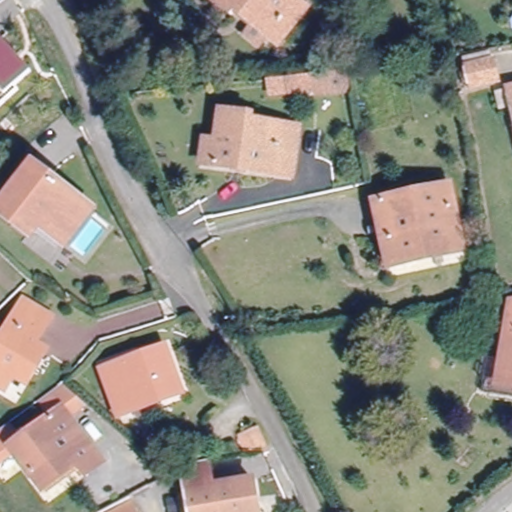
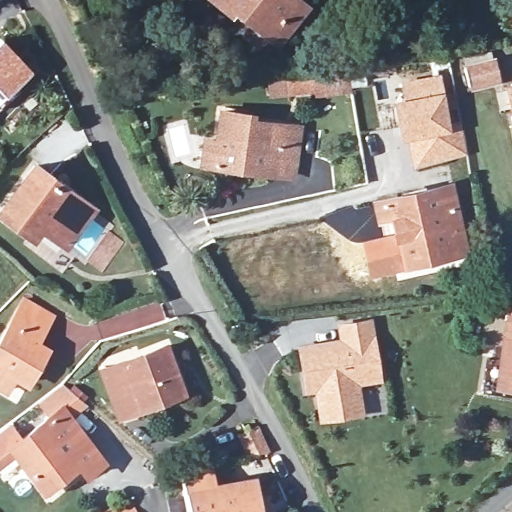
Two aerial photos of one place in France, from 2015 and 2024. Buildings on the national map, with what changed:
unchanged [(269,28),(268,29),(267,29),(259,40),(242,29),(250,17),(233,5),(230,9),(218,0),(300,0),(277,33),(269,28)]
unchanged [(34,68),(18,83),(20,86),(0,104),(0,105),(0,38),(4,35),(34,68)]
unchanged [(501,82),(470,89),(464,64),(496,56),(501,82)]
unchanged [(268,76),(287,74),(345,67),(349,86),(317,90),(317,86),(289,89),(269,91),(268,76)]
new [(413,167),(408,137),(399,139),(392,99),(403,96),(400,80),(439,74),(443,91),(448,121),(460,119),(467,154),(413,167)]
unchanged [(199,134),(217,135),(219,119),(244,123),(244,128),(295,134),(290,179),(213,169),(196,168),(199,134)]
unchanged [(87,212),(59,245),(34,226),(25,235),(0,212),(0,206),(34,167),(87,212)]
unchanged [(462,253),(391,273),(382,244),(376,226),(372,208),(387,204),(444,188),(462,253)]
unchanged [(0,338),(22,295),(49,310),(35,337),(46,342),(29,374),(18,367),(9,383),(0,378),(0,338)]
unchanged [(494,385),(511,302),(512,302),(512,389),(494,385)]
new [(317,421),(313,392),(303,393),(295,344),(338,338),(335,322),(372,318),(382,381),(359,385),(364,415),(317,421)]
unchanged [(163,351),(181,392),(119,417),(101,376),(163,351)]
unchanged [(84,481),(76,471),(41,491),(12,448),(51,424),(39,407),(66,390),(81,405),(64,416),(100,470),(84,481)]
unchanged [(249,448),(236,417),(239,416),(257,408),(272,443),(259,449),(253,452),(244,457),(244,454),(243,450),(249,448)]
unchanged [(214,488),(259,480),(265,512),(186,512),(180,476),(212,466),(214,488)]
unchanged [(129,511),(129,512),(127,512),(129,511)]

